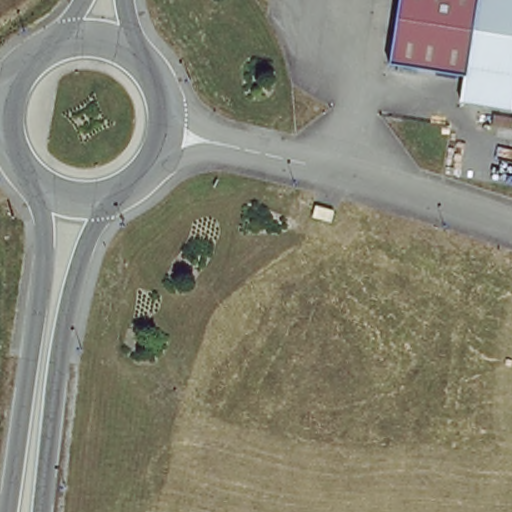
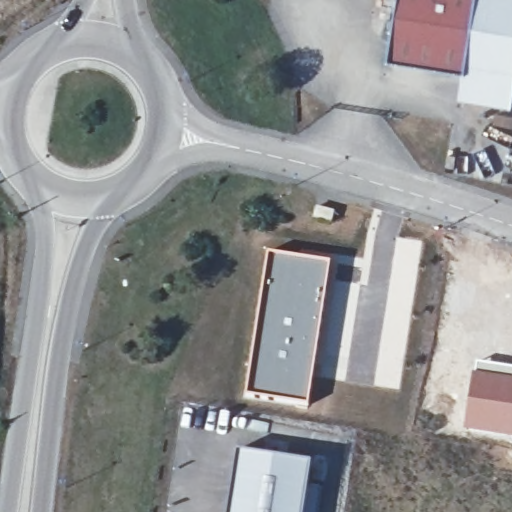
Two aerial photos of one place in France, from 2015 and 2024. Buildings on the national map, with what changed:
unchanged [(391,65),(402,0),(478,0),(465,77),(391,65)]
unchanged [(460,103),(465,77),(478,0),(512,0),(512,110),(460,103)]
new [(269,251),(332,261),(308,407),(244,396),(269,251)]
new [(475,360),(512,365),(512,438),(460,430),(475,360)]
new [(236,451),(311,462),(307,485),(322,488),(318,512),(226,512),(236,451)]

